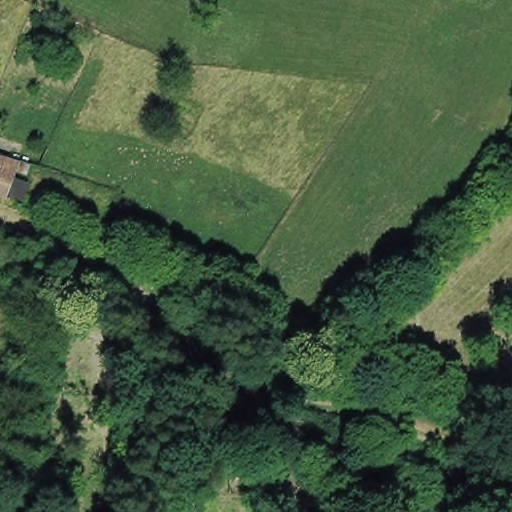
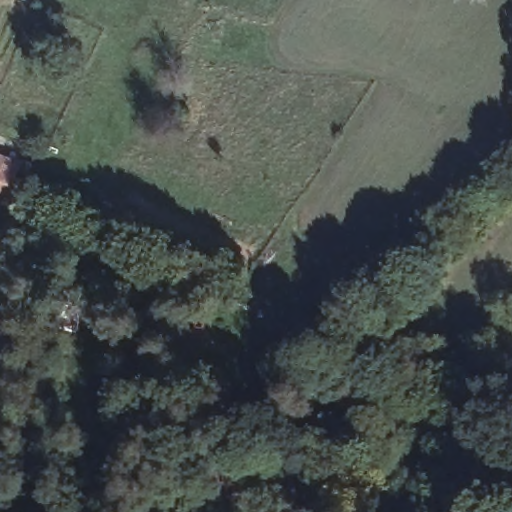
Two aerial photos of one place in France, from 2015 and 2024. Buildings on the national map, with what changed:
unchanged [(0,150),(21,156),(12,182),(0,179),(0,150)]

